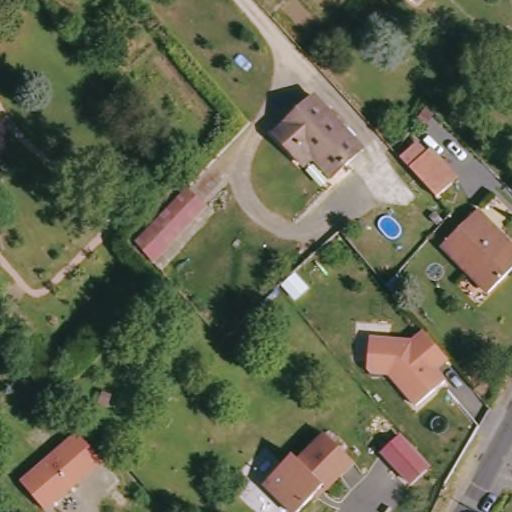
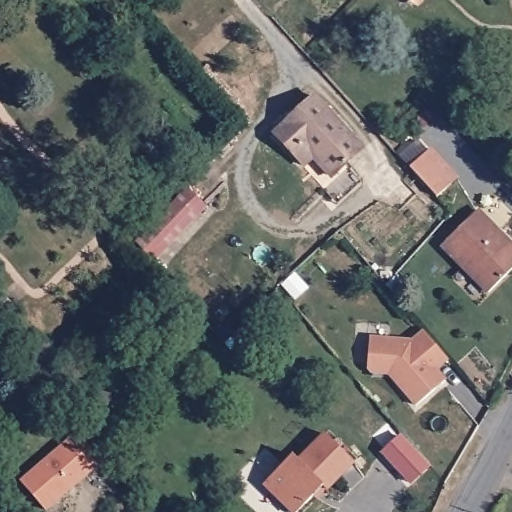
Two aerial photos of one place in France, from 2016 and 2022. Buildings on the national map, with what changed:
unchanged [(311,96),(358,146),(324,176),(294,145),(286,151),(269,132),(311,96)]
unchanged [(420,182),(402,162),(422,144),(448,172),(428,190),(420,182)]
unchanged [(210,199),(158,254),(141,234),(193,180),(210,199)]
unchanged [(470,205),(512,249),(512,260),(483,286),(437,235),(470,205)]
unchanged [(428,337),(448,361),(437,371),(447,383),(417,410),(391,380),(391,378),(388,375),(384,377),(373,376),(368,370),(369,340),(412,343),(412,344),(424,333),(428,337)]
unchanged [(20,479),(75,431),(103,460),(45,510),(20,479)]
unchanged [(379,453),(400,432),(431,466),(409,485),(379,453)]
unchanged [(271,476),(294,455),(299,461),(326,436),(354,465),(325,491),(322,488),(301,507),(295,512),(290,512),(264,482),(271,476)]
unchanged [(502,512),(495,512),(497,508),(502,512)]

